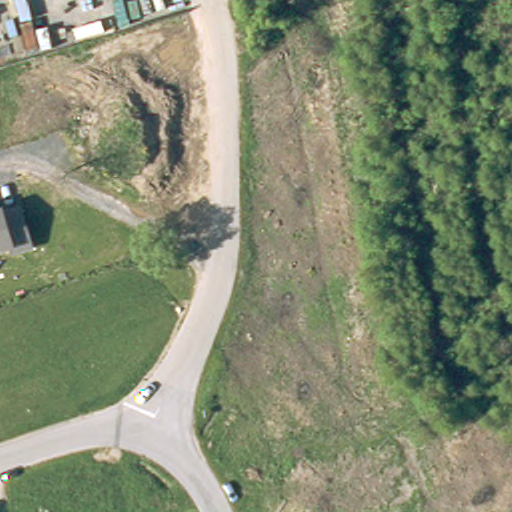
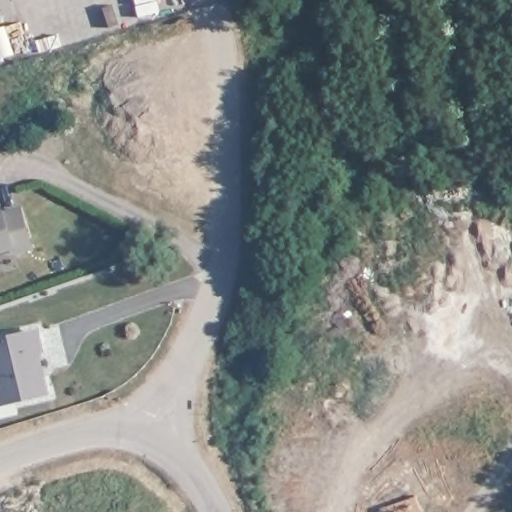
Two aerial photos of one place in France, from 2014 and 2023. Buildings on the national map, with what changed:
new [(35,250),(14,256),(12,249),(0,253),(0,209),(4,207),(22,204),(35,250)]
new [(46,352),(41,352),(49,393),(0,404),(0,336),(40,327),(46,352)]

